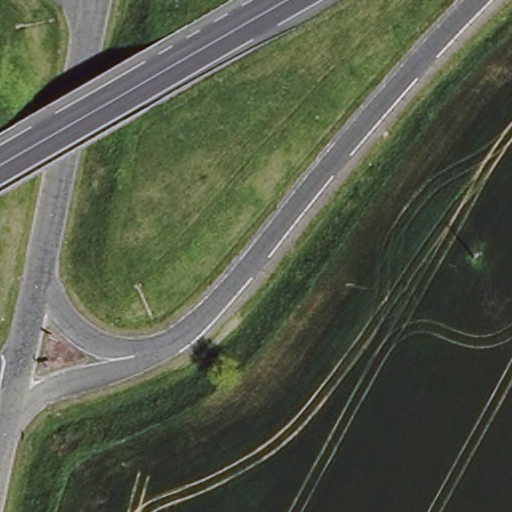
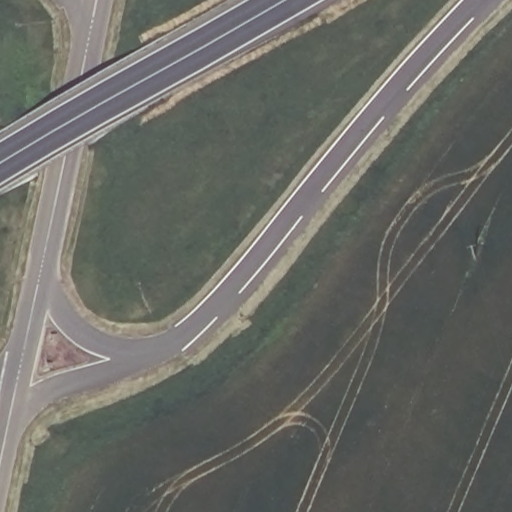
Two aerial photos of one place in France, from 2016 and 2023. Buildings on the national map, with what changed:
[]

